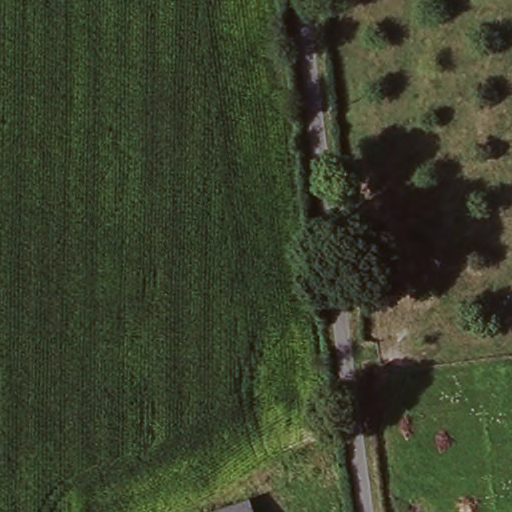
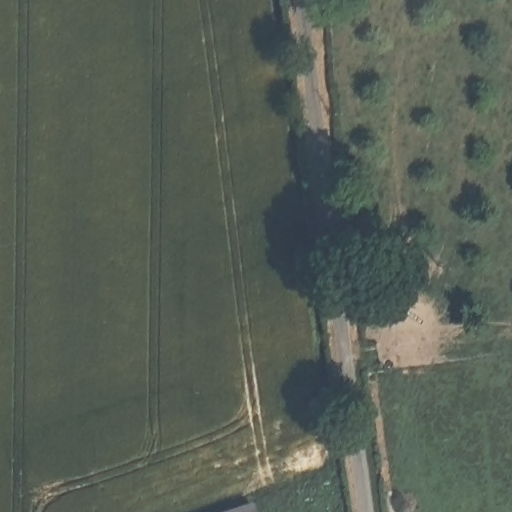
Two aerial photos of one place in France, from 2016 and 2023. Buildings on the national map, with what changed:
unchanged [(253,512),(226,512),(249,503),(253,512)]

